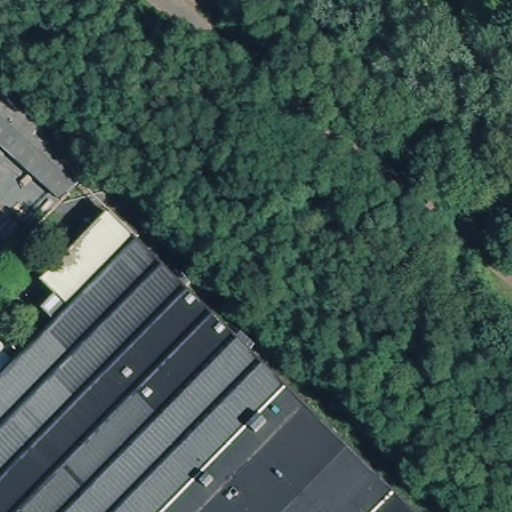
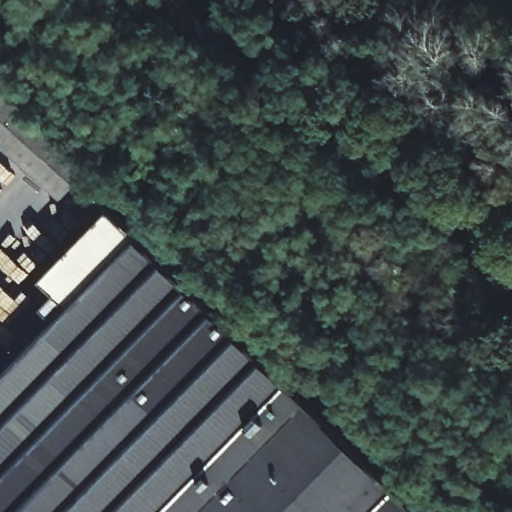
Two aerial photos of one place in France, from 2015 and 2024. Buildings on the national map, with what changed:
unchanged [(89,167),(61,199),(0,144),(0,87),(89,167)]
unchanged [(39,338),(29,329),(83,273),(74,265),(118,219),(269,365),(284,349),(309,374),(294,388),(314,410),(330,394),(343,407),(328,422),(420,512),(0,512),(0,379),(39,338)]

